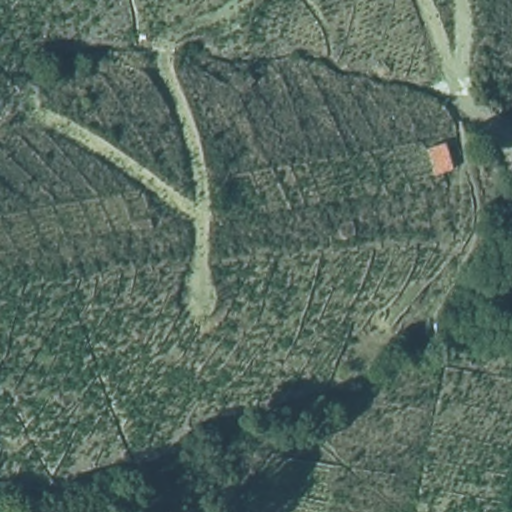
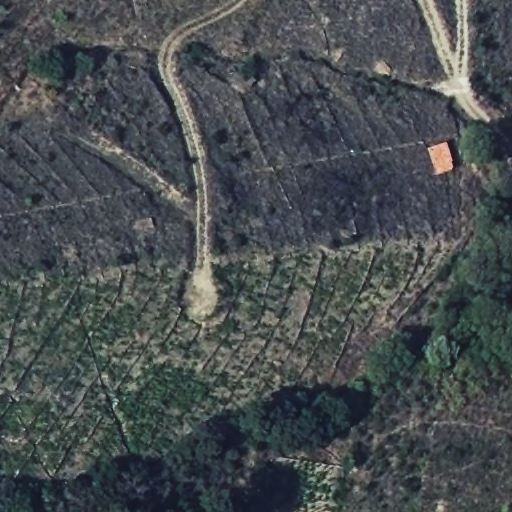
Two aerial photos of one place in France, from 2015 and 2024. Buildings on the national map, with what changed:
unchanged [(443,179),(433,153),(449,149),(462,176),(443,179)]

